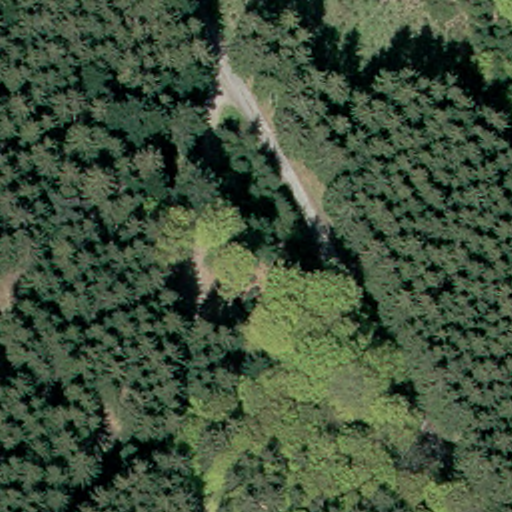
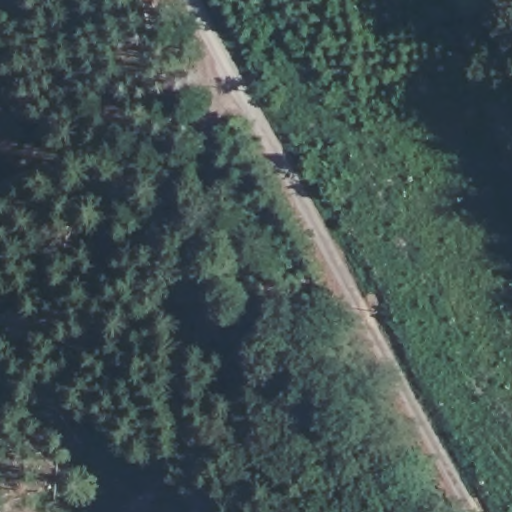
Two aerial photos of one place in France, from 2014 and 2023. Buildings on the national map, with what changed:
unchanged [(231,359),(210,380),(189,361),(209,339),(231,359)]

